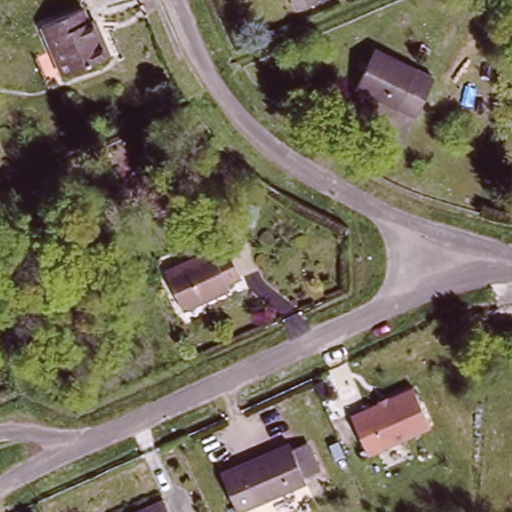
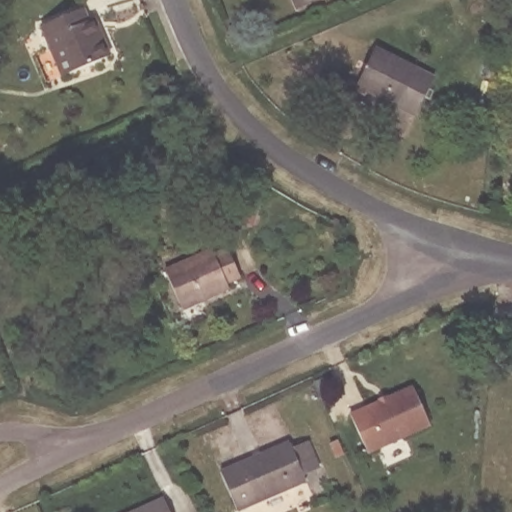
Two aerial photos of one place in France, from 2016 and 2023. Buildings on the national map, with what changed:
unchanged [(310,0),(294,7),(290,0),(310,0)]
unchanged [(65,86),(55,61),(44,36),(86,19),(91,32),(97,29),(101,38),(114,66),(65,86)]
unchanged [(354,86),(372,48),(432,77),(412,116),(354,86)]
unchanged [(111,183),(123,178),(129,191),(117,196),(111,183)]
unchanged [(168,272),(215,251),(217,256),(231,250),(244,277),(230,283),(232,288),(185,310),(168,272)]
unchanged [(345,416),(409,390),(425,432),(363,459),(345,416)]
unchanged [(335,452),(328,439),(334,436),(340,449),(335,452)]
unchanged [(222,472),(292,442),(294,448),(309,442),(320,468),(306,475),(308,480),(239,510),(222,472)]
unchanged [(162,500),(167,512),(135,512),(162,500)]

